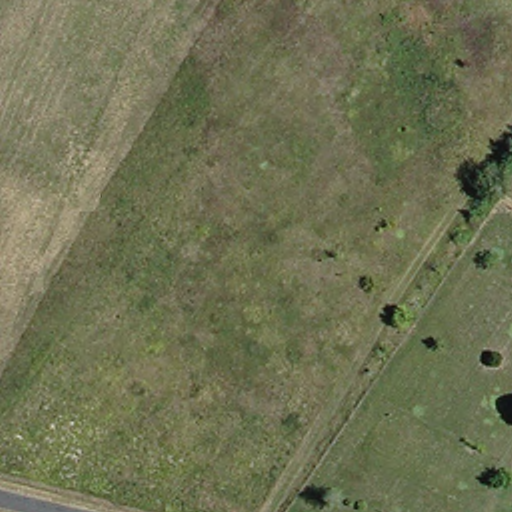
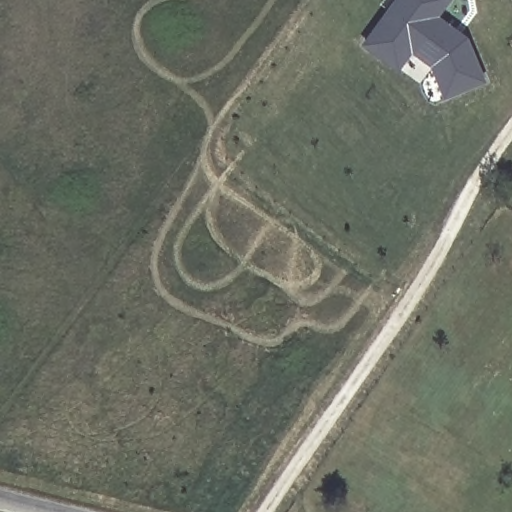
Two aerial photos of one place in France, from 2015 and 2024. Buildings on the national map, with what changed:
new [(368,40),(398,0),(449,0),(438,14),(457,26),(464,32),(469,35),(486,77),(448,93),(435,62),(414,46),(401,65),(386,54),(368,40)]

